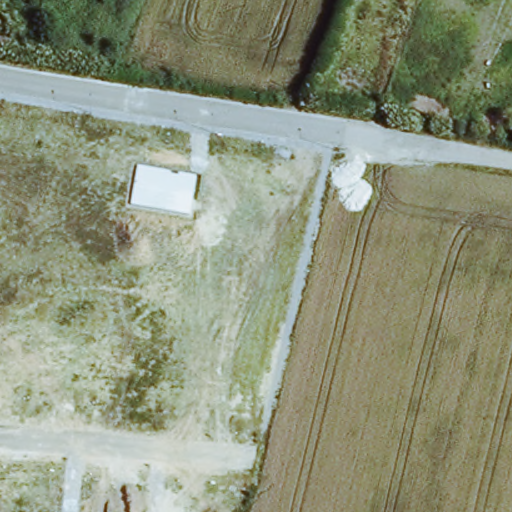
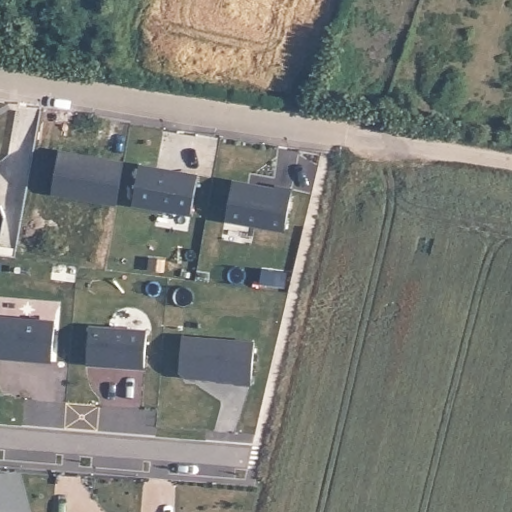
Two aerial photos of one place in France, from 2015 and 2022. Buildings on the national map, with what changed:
new [(59,152),(88,157),(87,159),(93,159),(97,158),(124,162),(116,204),(52,194),(59,152)]
new [(200,174),(190,217),(132,206),(140,164),(200,174)]
new [(235,180),(251,182),(250,184),(260,186),(260,184),(277,187),(277,184),(295,187),(287,232),(227,222),(235,180)]
new [(55,322),(52,362),(0,357),(0,317),(55,322)]
new [(90,327),(147,331),(145,369),(86,365),(90,327)]
new [(182,337),(254,342),(251,385),(235,383),(235,381),(203,378),(204,377),(196,376),(196,378),(184,377),(179,372),(182,337)]

